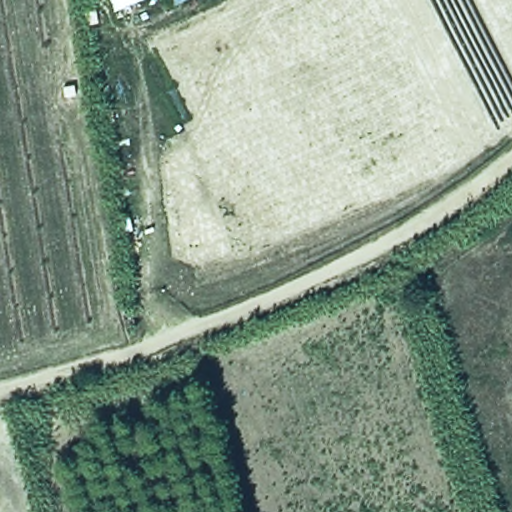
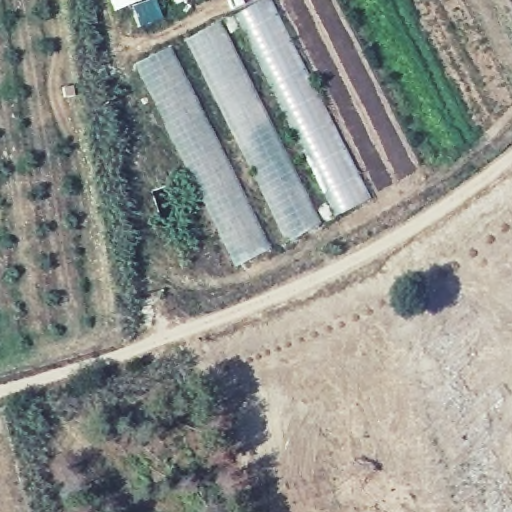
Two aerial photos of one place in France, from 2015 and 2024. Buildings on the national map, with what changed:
unchanged [(113,12),(108,0),(145,0),(113,12)]
unchanged [(173,8),(170,0),(189,0),(173,8)]
new [(367,202),(336,216),(236,15),(264,0),(268,0),(367,202)]
new [(318,227),(288,242),(185,40),(218,24),(318,227)]
new [(270,251),(237,267),(137,64),(168,48),(270,251)]

